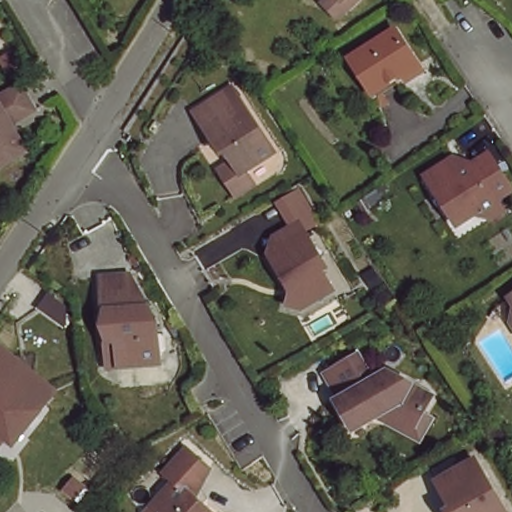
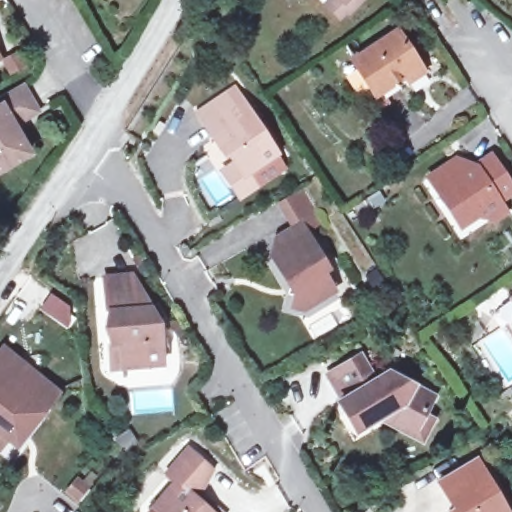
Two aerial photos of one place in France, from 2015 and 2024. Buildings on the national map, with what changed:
unchanged [(352,7),(342,17),(340,15),(335,20),(320,5),(324,0),(352,0),(349,2),(352,7)]
unchanged [(403,81),(398,72),(370,90),(348,55),(390,27),(413,61),(420,70),(403,81)]
unchanged [(0,65),(0,62),(1,64),(0,65)]
unchanged [(275,154),(240,174),(227,150),(220,154),(195,111),(235,86),(275,154)]
unchanged [(14,124),(30,151),(0,169),(0,101),(25,87),(38,110),(14,124)]
unchanged [(436,193),(425,176),(459,155),(467,167),(495,148),(512,173),(512,187),(498,194),(506,207),(495,216),(478,209),(463,219),(457,224),(436,193)]
unchanged [(317,289),(300,299),(287,295),(288,282),(266,243),(302,223),(321,259),(317,261),(325,275),(328,283),(317,289)]
unchanged [(101,338),(97,272),(131,271),(145,300),(147,314),(154,315),(156,360),(115,362),(103,362),(101,338)]
unchanged [(505,325),(509,307),(501,296),(512,289),(512,333),(505,325)]
unchanged [(10,435),(0,428),(0,340),(50,383),(10,435)]
unchanged [(421,437),(376,413),(353,425),(337,398),(340,394),(328,369),(360,351),(372,376),(388,367),(435,390),(424,408),(435,413),(421,437)]
unchanged [(210,464),(195,492),(214,512),(161,512),(161,507),(155,499),(174,478),(167,468),(190,444),(210,464)]
unchanged [(453,508),(437,480),(476,459),(508,512),(449,512),(448,511),(453,508)]
unchanged [(76,497),(66,509),(53,498),(63,485),(76,497)]

